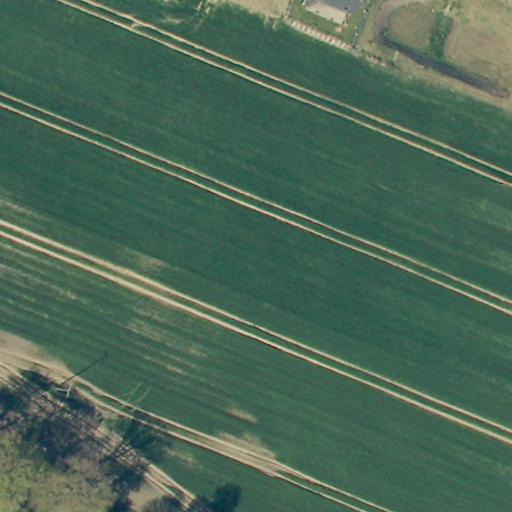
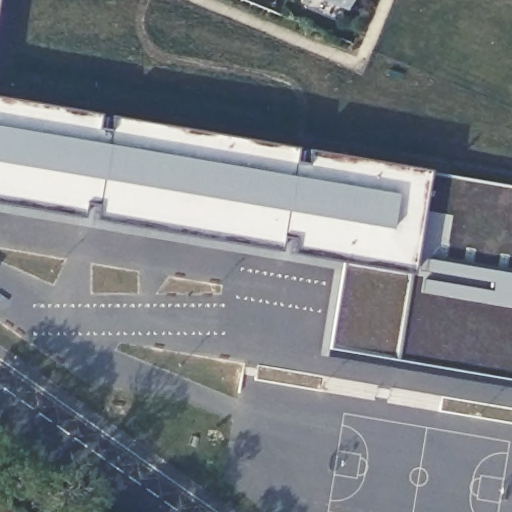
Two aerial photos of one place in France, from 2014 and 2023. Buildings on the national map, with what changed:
unchanged [(344,8),(322,0),(347,0),(344,8)]
new [(316,355),(331,270),(0,214),(0,99),(95,114),(94,128),(104,130),(106,116),(292,148),(290,162),(302,164),(305,150),(425,171),(512,186),(512,389),(316,355)]

